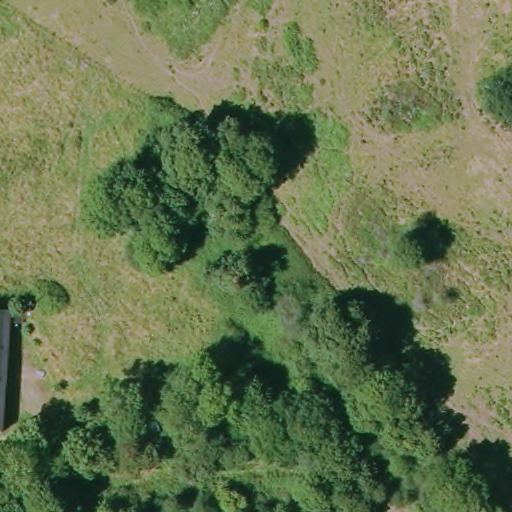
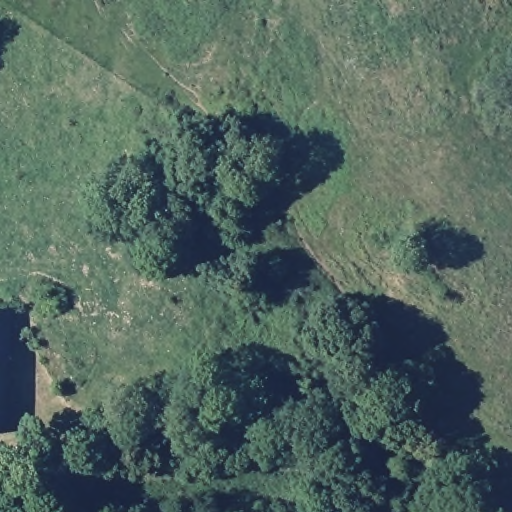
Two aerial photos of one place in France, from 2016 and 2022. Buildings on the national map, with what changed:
unchanged [(7,437),(0,437),(0,314),(7,313),(7,437)]

